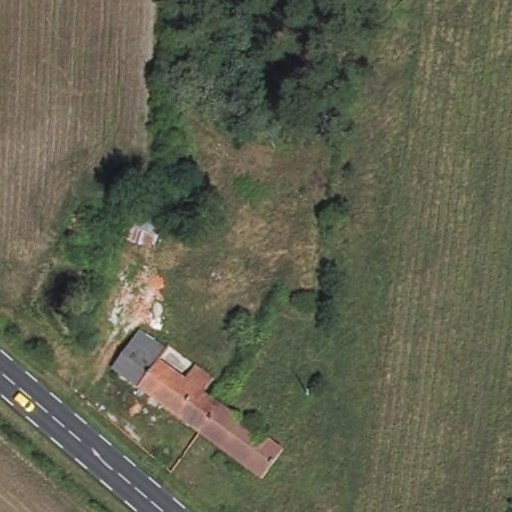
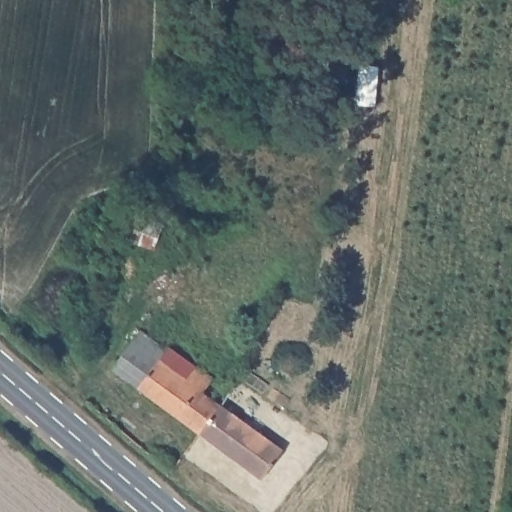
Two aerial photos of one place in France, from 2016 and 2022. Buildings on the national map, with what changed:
unchanged [(194,243),(187,253),(172,244),(179,234),(194,243)]
unchanged [(128,338),(136,344),(170,370),(179,358),(208,379),(200,390),(209,396),(216,386),(223,392),(217,403),(199,433),(108,365),(128,338)]
unchanged [(217,403),(277,447),(258,477),(199,433),(217,403)]

